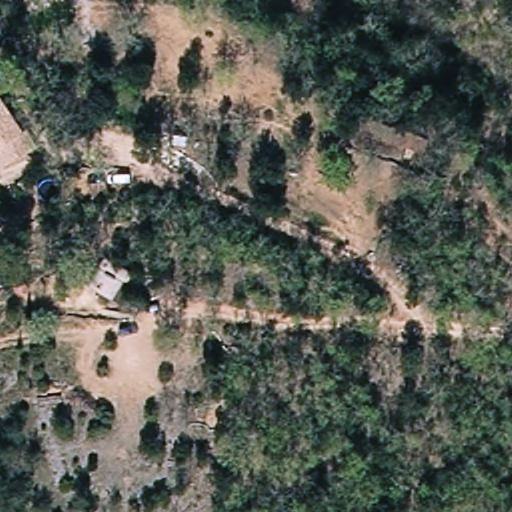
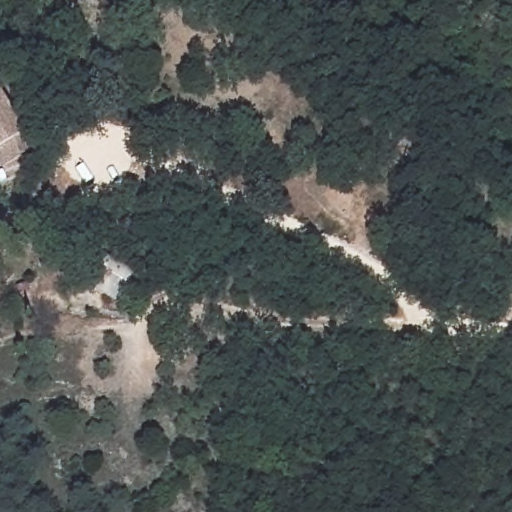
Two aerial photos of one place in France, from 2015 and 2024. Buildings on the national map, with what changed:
unchanged [(0,87),(27,133),(32,130),(42,148),(12,164),(3,168),(0,160),(0,87)]
unchanged [(422,155),(355,134),(360,115),(427,137),(422,155)]
unchanged [(140,293),(122,282),(112,303),(87,288),(103,257),(147,280),(140,293)]

